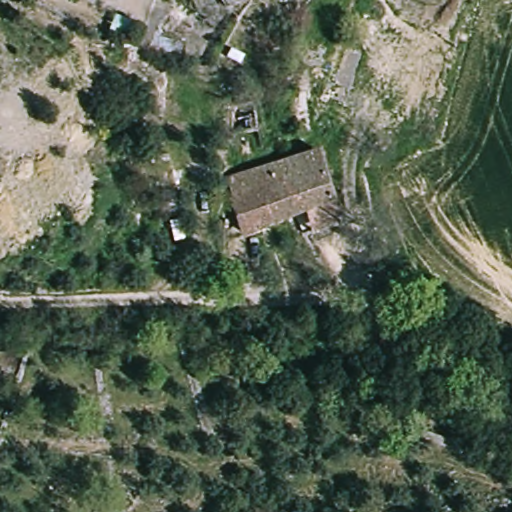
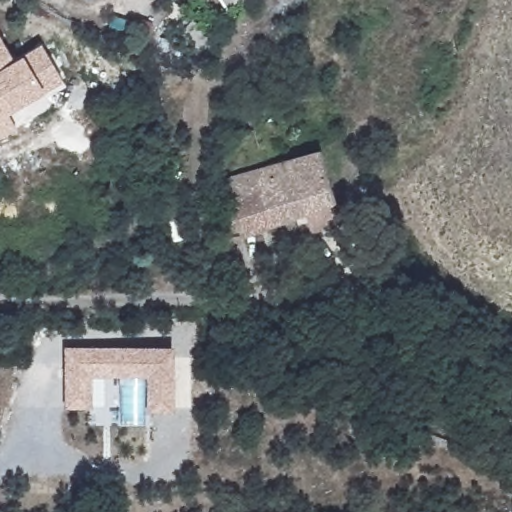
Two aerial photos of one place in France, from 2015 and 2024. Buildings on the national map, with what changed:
unchanged [(213,0),(215,0),(214,1),(213,0)]
new [(67,79),(11,112),(19,127),(0,138),(0,31),(18,62),(47,45),(67,79)]
unchanged [(275,185),(269,166),(284,161),(318,150),(335,202),(286,218),(275,185)]
unchanged [(244,232),(233,199),(275,185),(286,218),(244,232)]
new [(173,347),(173,409),(151,409),(151,370),(91,370),(91,405),(68,405),(68,347),(173,347)]

